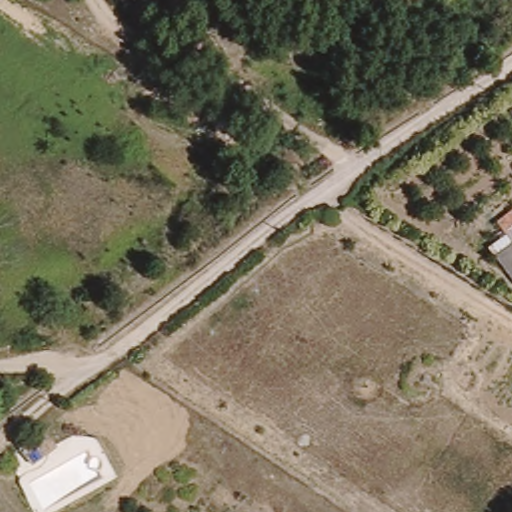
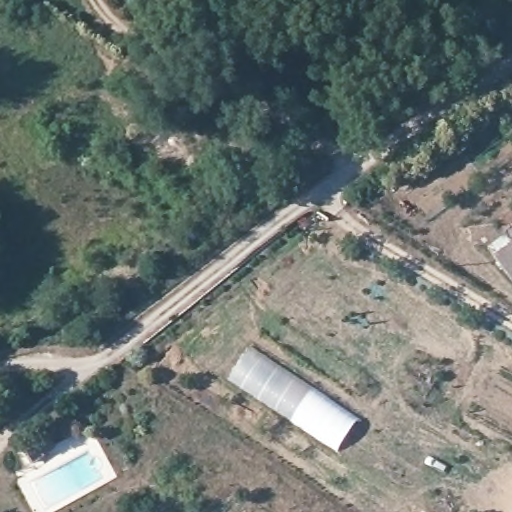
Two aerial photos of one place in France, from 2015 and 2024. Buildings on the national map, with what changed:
new [(507,234),(497,221),(512,211),(512,280),(487,248),(507,234)]
new [(338,450),(228,380),(249,349),(356,420),(338,450)]
new [(45,430),(55,444),(30,462),(19,448),(45,430)]

